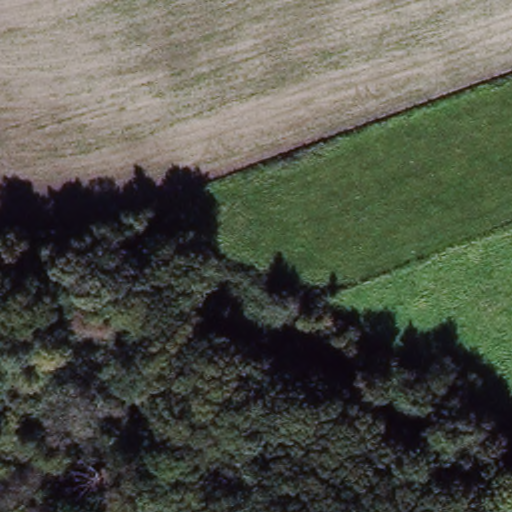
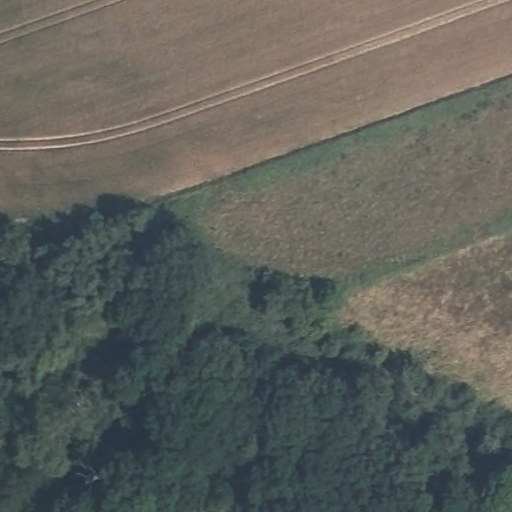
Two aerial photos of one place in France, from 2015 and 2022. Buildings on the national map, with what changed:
unchanged [(357,294),(361,307),(338,316),(331,302),(357,294)]

